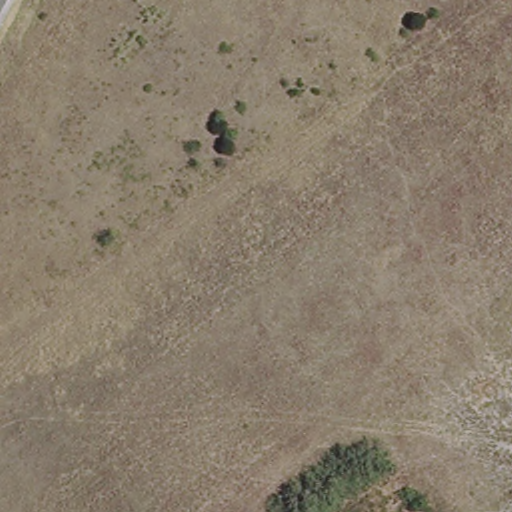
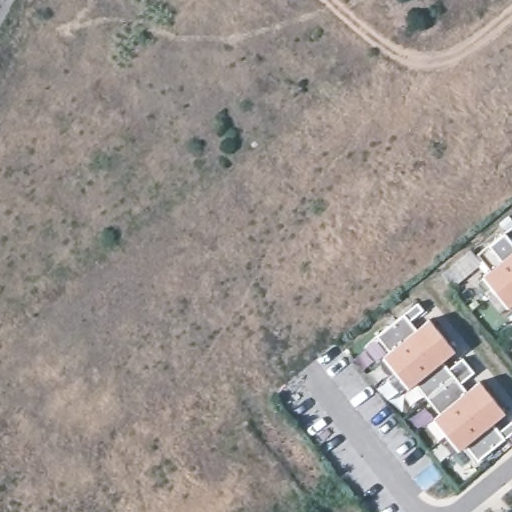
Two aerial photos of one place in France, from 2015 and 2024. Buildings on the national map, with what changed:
new [(507,295),(501,301),(477,271),(484,266),(483,265),(490,260),(477,244),(512,215),(512,227),(510,229),(512,232),(512,293),(508,296),(507,295)]
new [(440,403),(415,372),(407,378),(407,377),(400,382),(376,353),(383,347),(382,346),(389,341),(376,325),(416,292),(422,300),(408,312),(416,320),(430,309),(455,340),(441,351),(448,359),(462,347),(473,362),(460,373),(466,381),(480,370),(505,402),(492,412),(499,421),(512,410),(512,421),(477,450),(465,434),(458,439),(457,438),(450,444),(427,415),(433,409),(433,408),(440,403)]

